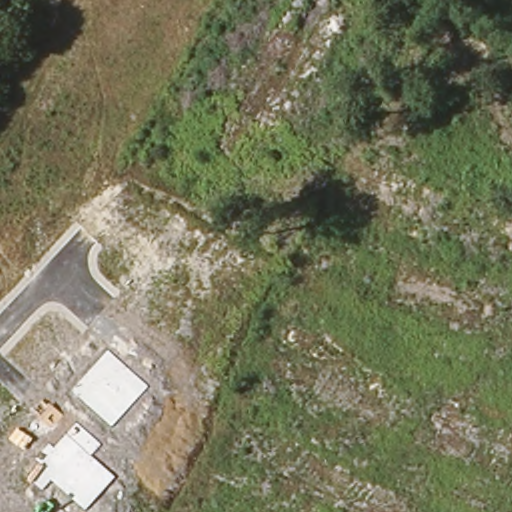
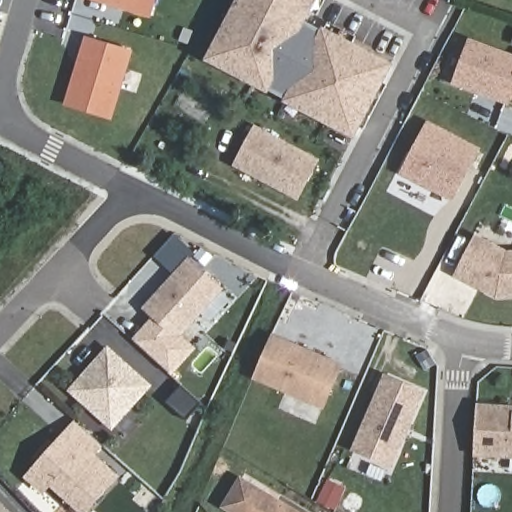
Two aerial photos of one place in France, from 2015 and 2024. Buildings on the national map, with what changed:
new [(87,0),(157,0),(151,19),(87,0)]
new [(220,53),(240,15),(237,13),(244,0),(318,0),(305,24),(392,70),(355,139),(210,63),(217,51),(220,53)]
new [(86,36),(134,50),(113,120),(64,106),(86,36)]
new [(512,100),(510,105),(452,84),(469,38),(512,54),(512,100)]
new [(453,202),(399,174),(427,121),(481,148),(453,202)]
new [(298,201),(233,166),(254,125),(320,159),(298,201)]
new [(496,299),(453,276),(476,233),(509,250),(512,250),(512,298),(496,299)]
new [(178,341),(142,307),(189,257),(224,289),(178,341)]
new [(324,409),(252,379),(271,332),(343,363),(324,409)]
unchanged [(112,425),(71,390),(109,351),(148,386),(112,425)]
new [(351,449),(384,373),(427,392),(393,468),(351,449)]
new [(182,387),(204,406),(188,423),(166,405),(182,387)]
new [(472,457),(475,403),(512,405),(512,459),(472,457)]
unchanged [(86,509),(50,480),(44,488),(30,475),(76,423),(100,444),(91,455),(115,476),(86,509)]
new [(219,507),(239,475),(300,512),(226,512),(219,507)]
new [(0,501),(10,512),(0,512),(0,501)]

